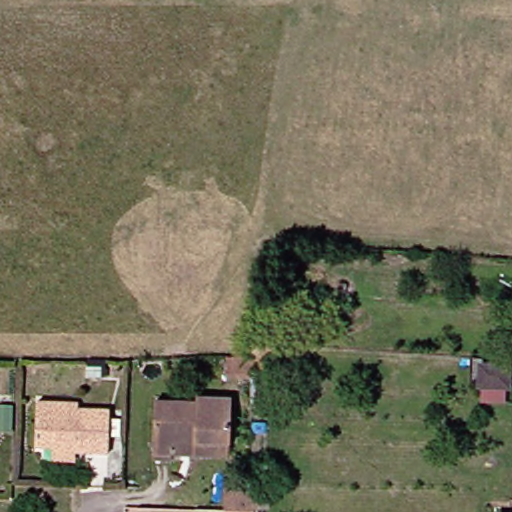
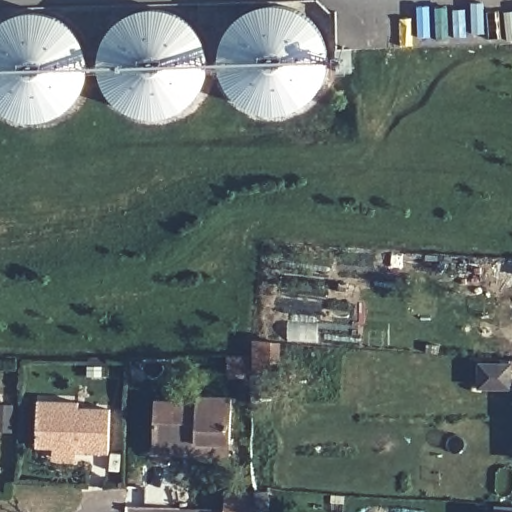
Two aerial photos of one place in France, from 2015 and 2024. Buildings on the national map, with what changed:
new [(330,67),(328,76),(324,85),(319,92),(312,99),(304,104),(296,107),(287,110),(277,111),(268,110),(259,107),(251,104),(243,98),(236,92),(231,84),(227,76),(225,67),(224,57),(225,48),(227,40),(231,31),(237,24),(243,17),(251,11),(259,7),(268,5),(278,5),(287,5),(296,7),(304,12),(312,17),(319,24),(324,31),(328,40),(330,49),(331,57),(330,67)]
new [(209,71),(207,81),(203,89),(197,97),(191,103),(183,108),(175,112),(166,115),(156,115),(147,115),(138,112),(130,108),(122,103),(116,96),(110,89),(107,80),(104,71),(104,62),(104,52),(107,44),(111,36),(116,27),(123,21),(130,16),(139,12),(147,10),(157,9),(166,10),(175,12),(183,16),(191,21),(197,28),(203,36),(207,44),(209,53),(210,62),(209,71)]
new [(87,84),(83,92),(78,100),(71,107),(64,112),(56,116),(47,119),(37,119),(28,119),(19,116),(11,112),(3,107),(0,103),(0,29),(3,25),(11,20),(19,16),(28,14),(38,12),(47,14),(56,16),(64,20),(78,32),(83,39),(88,47),(90,57),(91,66),(90,75),(87,84)]
unchanged [(348,283),(347,292),(340,292),(340,283),(348,283)]
unchanged [(486,364),(512,364),(512,387),(486,387),(486,364)]
unchanged [(173,452),(156,451),(158,402),(200,402),(200,397),(231,398),(230,443),(230,452),(173,452)]
unchanged [(54,460),(53,448),(38,448),(39,401),(81,402),(81,407),(112,408),(111,450),(78,450),(78,461),(54,460)]
unchanged [(228,492),(256,492),(257,508),(258,512),(227,512),(227,507),(228,492)]

